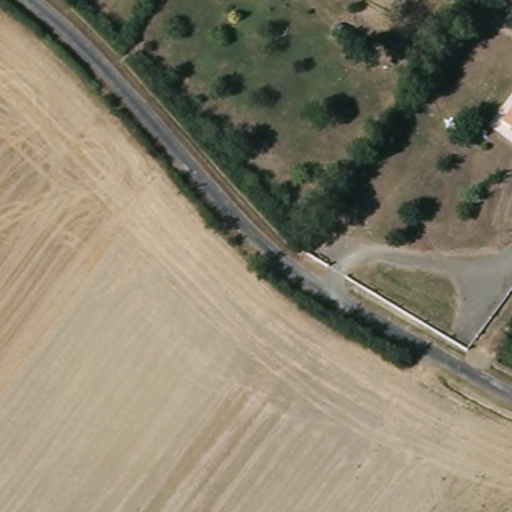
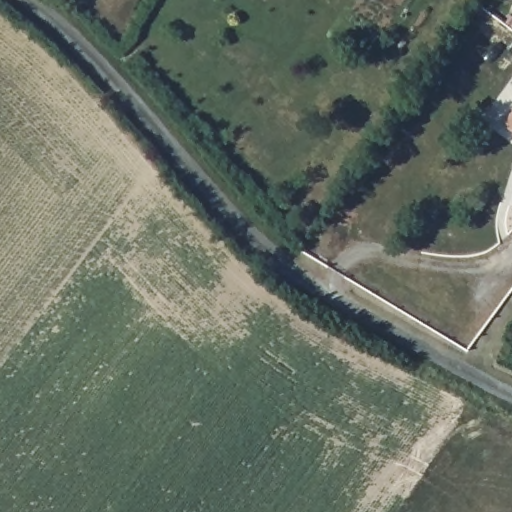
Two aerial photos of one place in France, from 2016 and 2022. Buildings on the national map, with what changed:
unchanged [(512,111),(512,126),(505,121),(512,111)]

